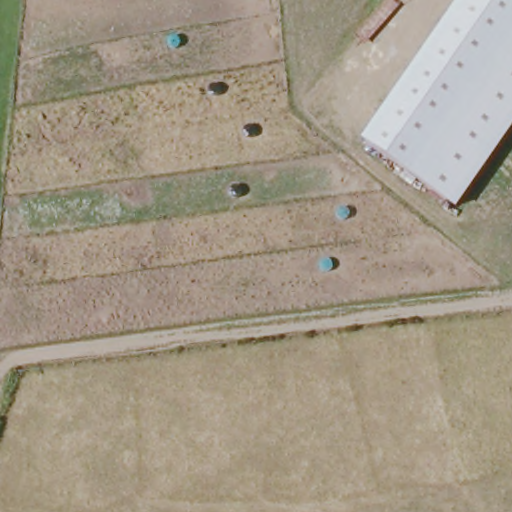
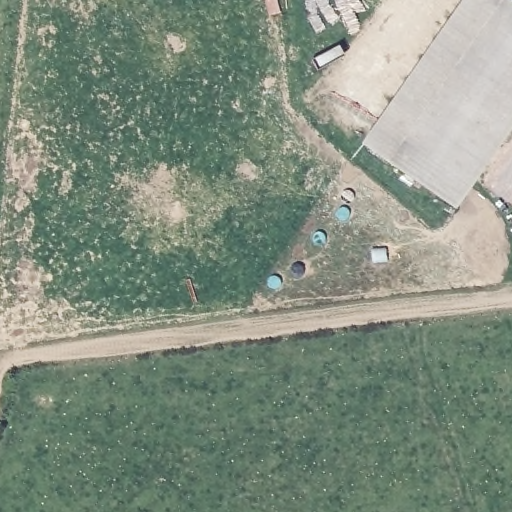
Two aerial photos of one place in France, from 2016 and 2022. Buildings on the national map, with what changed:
unchanged [(464,0),(512,0),(512,129),(457,208),(364,143),(464,0)]

